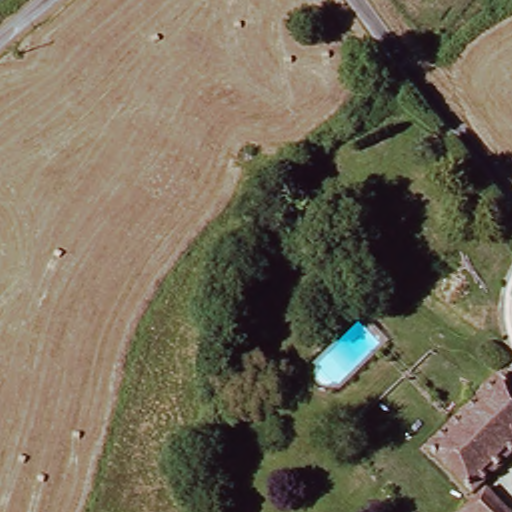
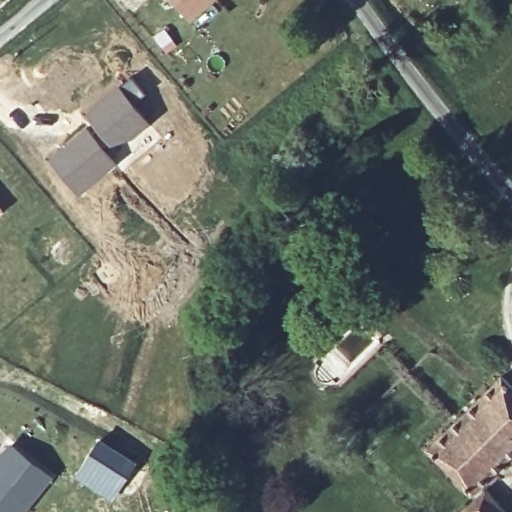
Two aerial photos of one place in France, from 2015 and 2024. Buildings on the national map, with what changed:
new [(171,0),(212,0),(189,20),(171,0)]
new [(131,75),(146,92),(136,102),(151,122),(131,137),(108,149),(89,122),(82,114),(131,75)]
new [(89,122),(108,149),(118,162),(77,196),(45,157),(89,122)]
new [(3,210),(0,211),(0,206),(3,210)]
unchanged [(432,455),(500,382),(512,395),(512,463),(474,497),(432,455)]
new [(97,437),(137,462),(130,473),(111,502),(72,476),(90,448),(97,437)]
new [(16,442),(43,465),(54,473),(45,485),(30,502),(21,512),(0,512),(0,461),(16,442)]
unchanged [(488,497),(504,512),(472,512),(488,497)]

